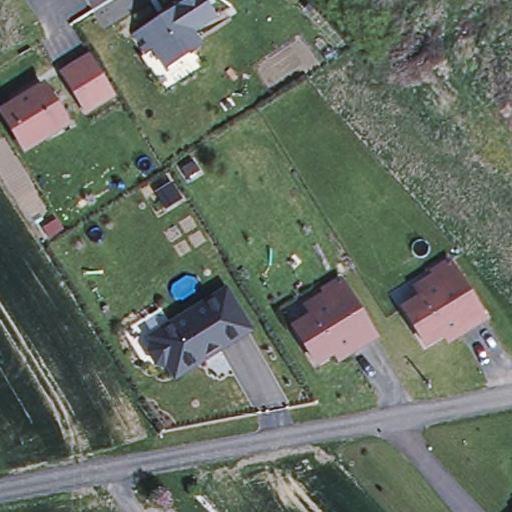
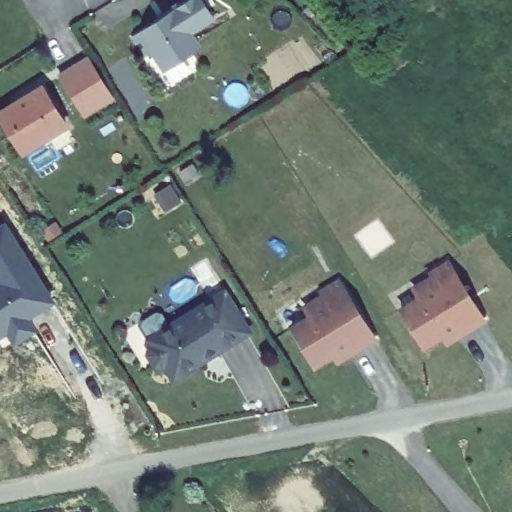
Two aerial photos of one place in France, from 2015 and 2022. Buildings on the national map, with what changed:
unchanged [(173,11),(171,8),(183,0),(200,0),(213,19),(190,35),(199,49),(166,71),(153,52),(146,57),(133,38),(173,11)]
unchanged [(89,56),(113,97),(85,118),(62,75),(89,56)]
unchanged [(43,89),(67,128),(25,155),(1,118),(43,89)]
new [(31,320),(38,333),(14,347),(8,337),(0,342),(0,227),(5,223),(55,306),(31,320)]
unchanged [(444,340),(426,351),(402,316),(420,304),(414,295),(433,283),(431,279),(447,268),(485,325),(468,336),(449,348),(444,340)]
unchanged [(331,353),(313,365),(289,327),(308,315),(303,307),(322,295),(319,291),(336,280),(373,338),(356,348),(336,360),(331,353)]
unchanged [(251,331),(178,377),(169,363),(164,366),(159,364),(153,353),(155,347),(158,345),(154,339),(228,293),(251,331)]

